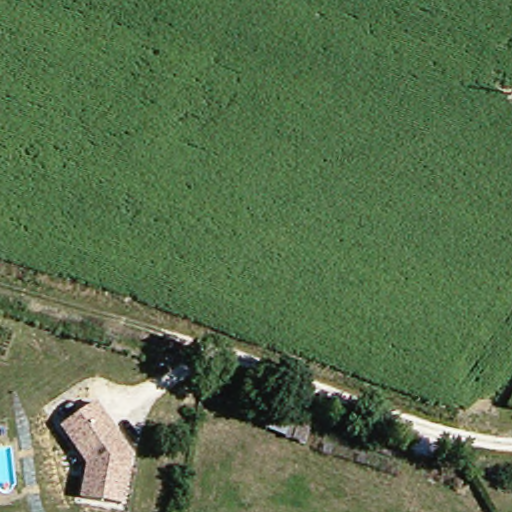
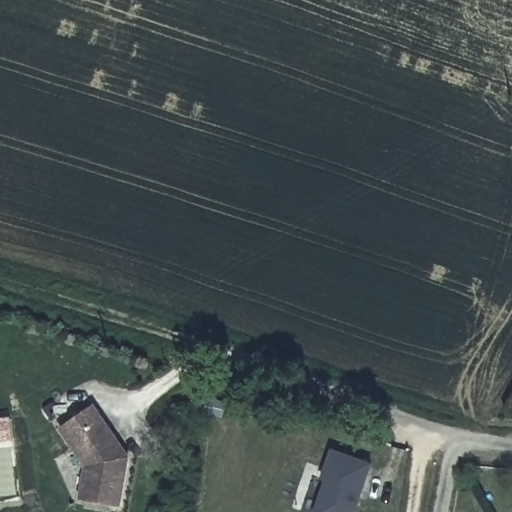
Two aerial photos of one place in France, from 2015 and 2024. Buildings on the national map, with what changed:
unchanged [(85,497),(91,463),(63,426),(95,403),(123,440),(132,453),(124,503),(85,497)]
new [(323,479),(331,451),(370,463),(356,512),(318,512),(321,500),(327,480),(323,479)]

